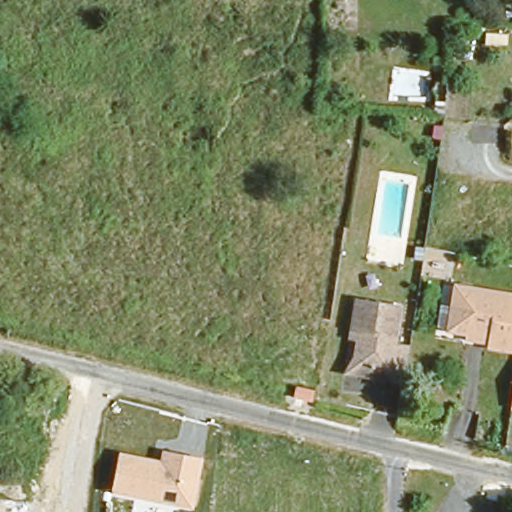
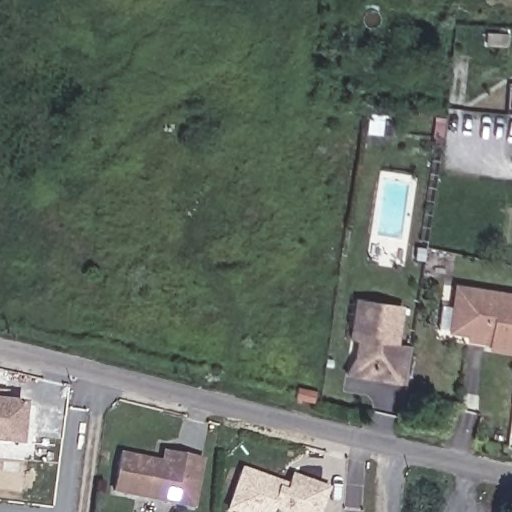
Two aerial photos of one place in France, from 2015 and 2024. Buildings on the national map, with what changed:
unchanged [(465,329),(451,327),(448,323),(437,321),(440,298),(453,300),(456,280),(512,289),(512,346),(485,342),(463,339),(465,329)]
unchanged [(397,303),(391,341),(406,343),(400,379),(385,377),(387,369),(365,366),(353,350),(356,329),(349,327),(354,296),(397,303)]
demolished [(46,418),(0,409),(0,374),(51,385),(46,418)]
new [(0,441),(0,388),(6,389),(4,403),(19,404),(15,441),(0,441)]
unchanged [(122,452),(160,459),(161,448),(204,457),(194,511),(114,495),(122,452)]
new [(277,511),(272,510),(271,512),(227,512),(224,511),(240,467),(287,483),(290,474),(328,487),(319,512),(277,512),(277,511)]

